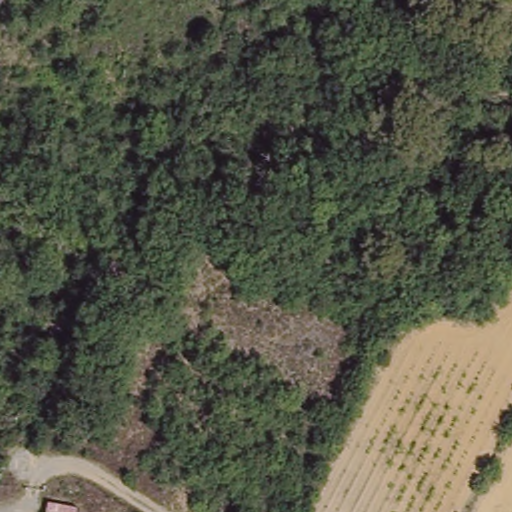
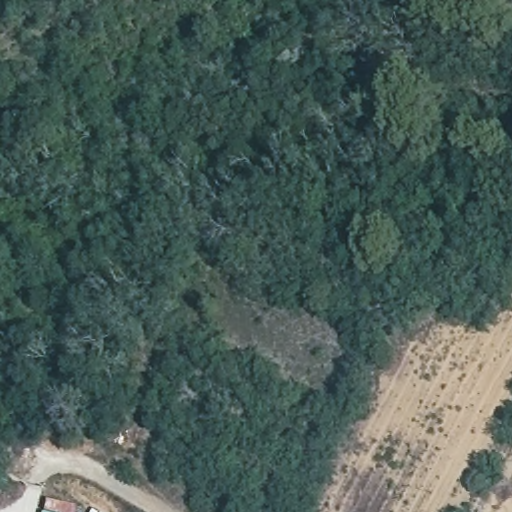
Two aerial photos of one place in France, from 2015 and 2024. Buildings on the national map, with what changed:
[]

